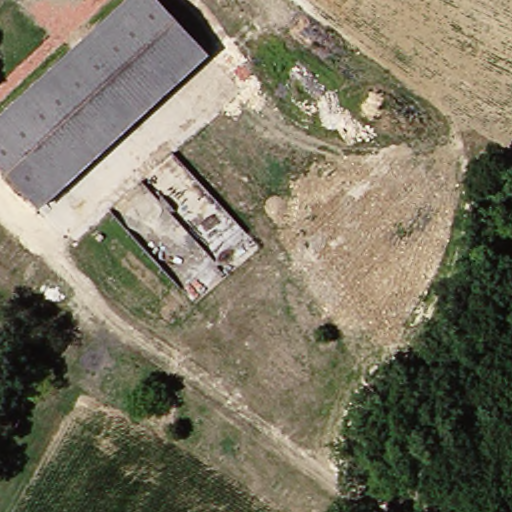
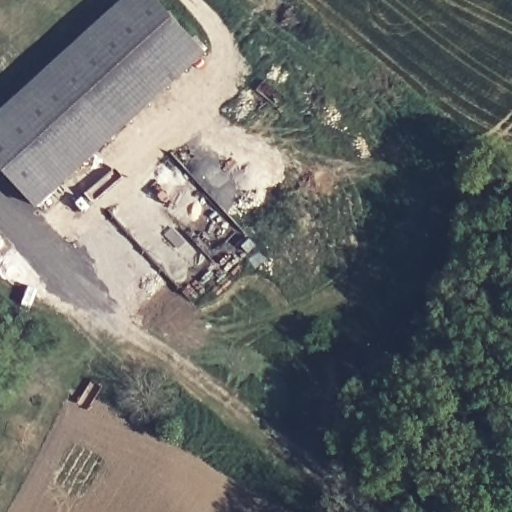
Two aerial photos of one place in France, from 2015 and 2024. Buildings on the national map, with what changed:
unchanged [(0,162),(0,121),(2,119),(136,0),(162,0),(212,55),(95,165),(73,185),(46,211),(0,162)]

